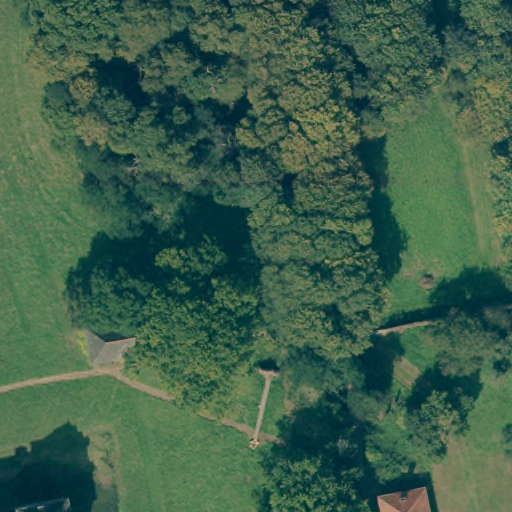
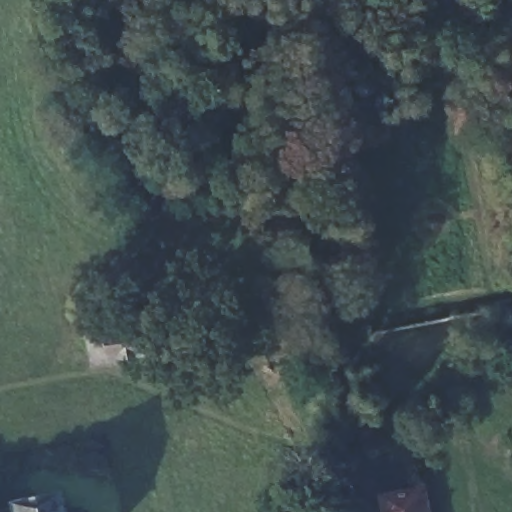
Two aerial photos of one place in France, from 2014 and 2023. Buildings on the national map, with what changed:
unchanged [(512,306),(512,313),(511,306),(512,306)]
unchanged [(88,366),(81,335),(145,324),(152,356),(88,366)]
unchanged [(381,500),(377,493),(378,485),(384,478),(392,477),(399,481),(402,490),(400,497),(417,493),(420,512),(378,512),(376,500),(381,500)]
unchanged [(7,506),(37,500),(59,496),(62,512),(8,512),(7,506)]

